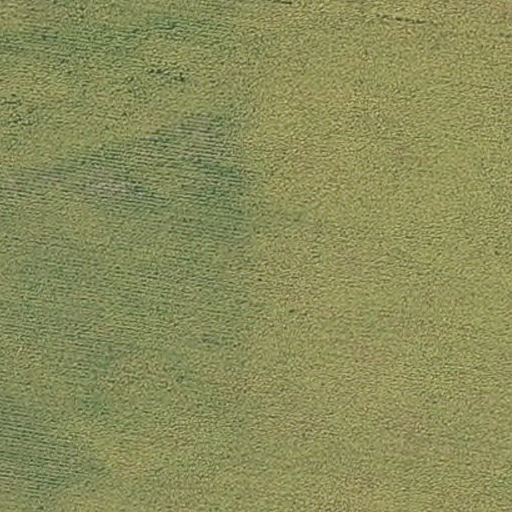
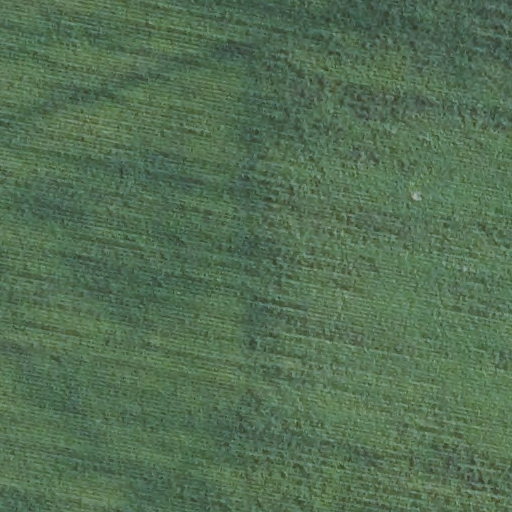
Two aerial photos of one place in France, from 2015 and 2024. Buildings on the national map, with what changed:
[]

